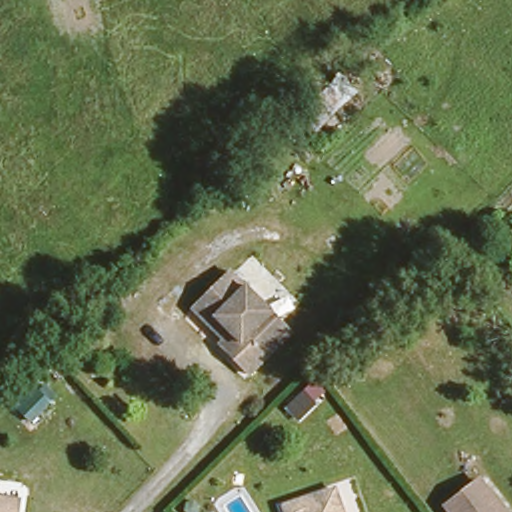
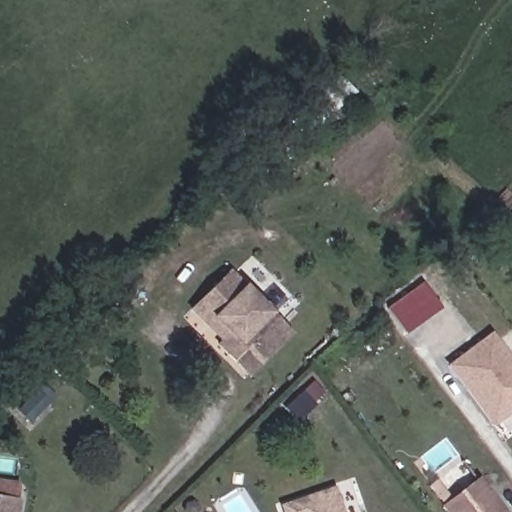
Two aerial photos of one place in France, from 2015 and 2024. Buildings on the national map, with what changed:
unchanged [(236,333),(219,318),(194,295),(225,262),(252,287),(289,321),(249,363),(234,350),(227,343),(236,333)]
new [(512,412),(496,424),(451,366),(493,333),(512,358),(512,412)]
unchanged [(38,398),(26,387),(43,369),(55,381),(38,398)]
unchanged [(506,512),(456,512),(449,503),(481,479),(506,512)]
unchanged [(17,489),(15,512),(0,512),(0,487),(17,489)]
unchanged [(277,511),(327,491),(336,512),(278,512),(277,511)]

